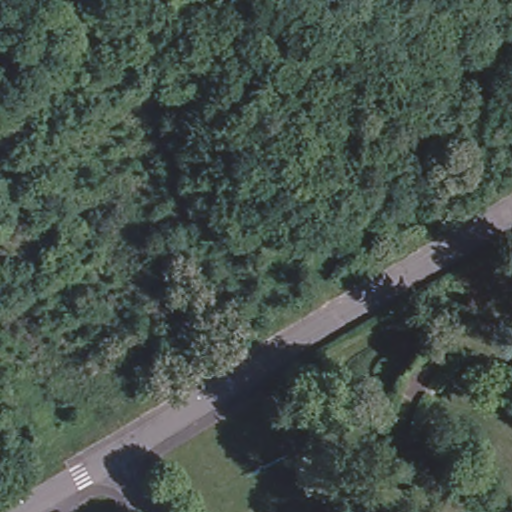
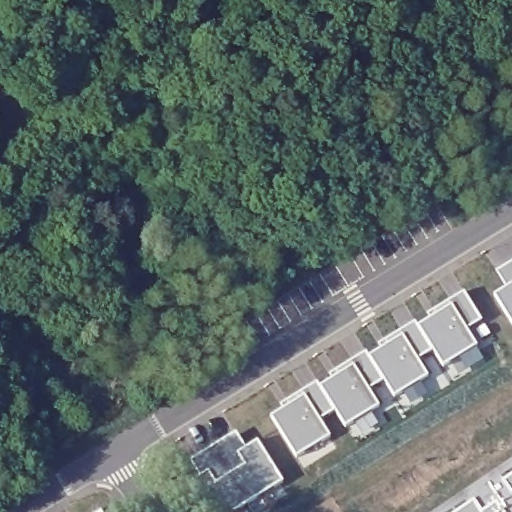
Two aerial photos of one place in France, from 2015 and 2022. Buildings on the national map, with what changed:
new [(512,277),(502,261),(512,255),(512,322),(492,290),(512,277)]
new [(434,310),(432,305),(462,286),(480,315),(465,325),(476,341),(442,362),(431,346),(416,321),(434,310)]
new [(386,340),(382,336),(413,317),(416,321),(431,346),(417,355),(427,371),(392,392),(382,376),(367,351),(386,340)]
new [(337,370),(334,366),(365,347),(367,351),(382,376),(367,385),(377,402),(344,423),(334,406),(319,381),(337,370)]
new [(287,400),(285,396),(316,377),(319,381),(334,406),(319,416),(329,432),(295,453),(270,412),(287,400)]
new [(206,467),(197,451),(227,432),(237,448),(256,436),(281,477),(225,512),(207,512),(187,480),(206,467)]
new [(502,474),(509,470),(502,459),(512,452),(512,489),(502,474)]
new [(474,499),(482,511),(497,501),(505,512),(455,512),(474,499)]

